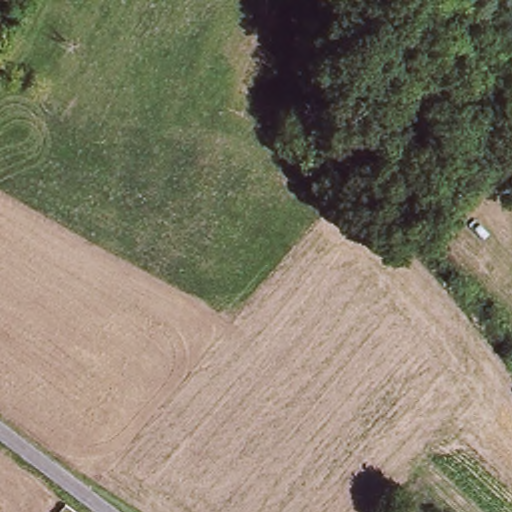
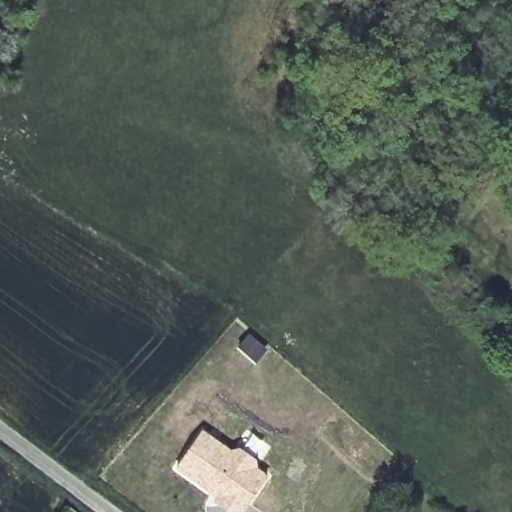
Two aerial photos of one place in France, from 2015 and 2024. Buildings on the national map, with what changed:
new [(202,428),(232,449),(239,445),(245,450),(259,456),(258,467),(268,475),(249,501),(241,496),(240,498),(228,508),(173,469),(202,428)]

